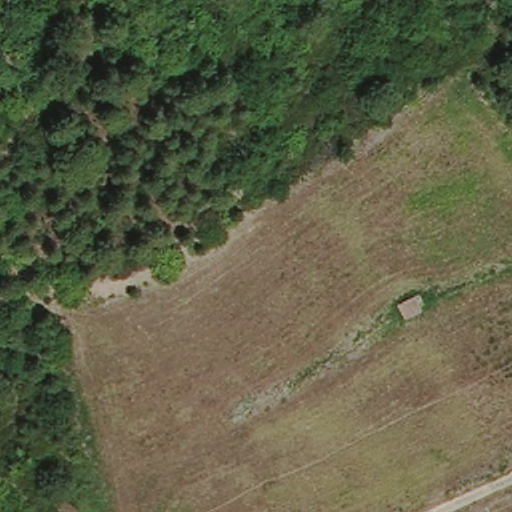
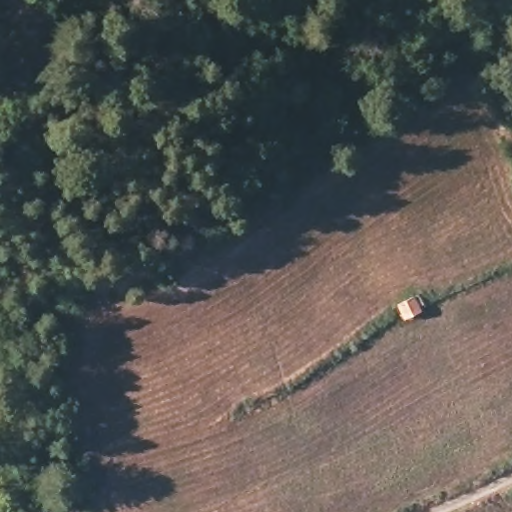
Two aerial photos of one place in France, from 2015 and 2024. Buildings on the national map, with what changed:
unchanged [(420,307),(411,312),(414,319),(401,325),(391,307),(413,296),(420,307)]

